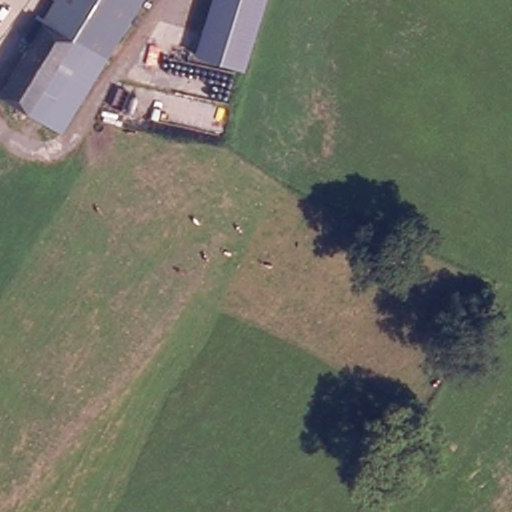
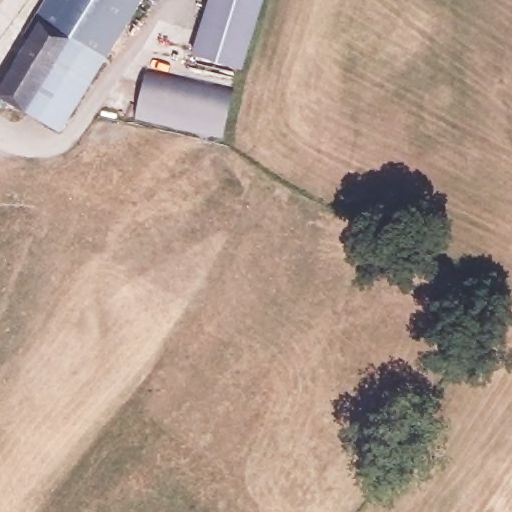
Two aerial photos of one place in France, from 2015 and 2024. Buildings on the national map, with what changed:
new [(5,0),(19,0),(25,5),(17,18),(23,22),(0,62),(0,6),(5,0)]
unchanged [(58,0),(140,0),(65,131),(4,95),(58,0)]
unchanged [(200,47),(214,0),(267,0),(250,62),(200,47)]
new [(144,67),(233,84),(223,140),(134,120),(144,67)]

